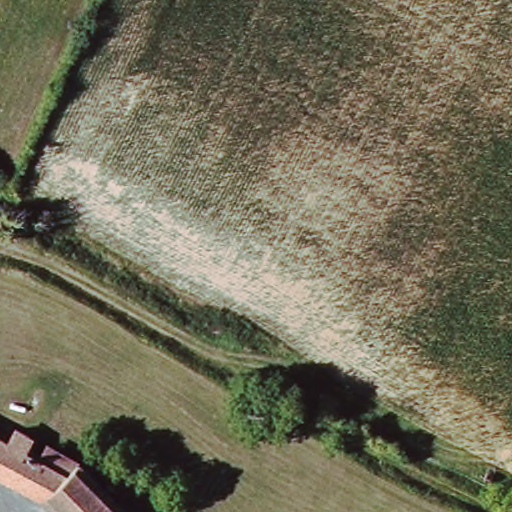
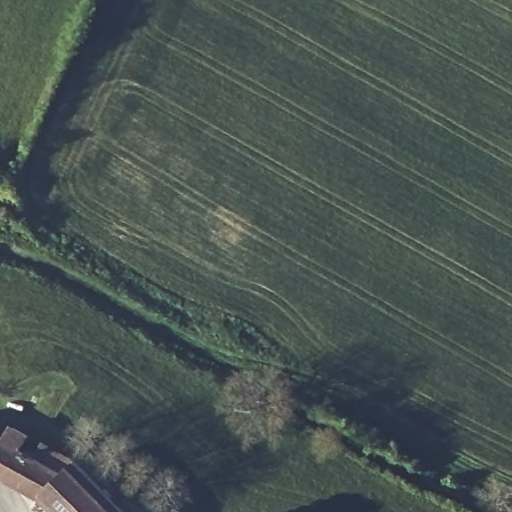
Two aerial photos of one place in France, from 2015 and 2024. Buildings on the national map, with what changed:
unchanged [(0,470),(0,432),(13,439),(20,425),(34,433),(26,447),(43,456),(50,443),(81,459),(131,512),(60,512),(45,496),(0,470)]

